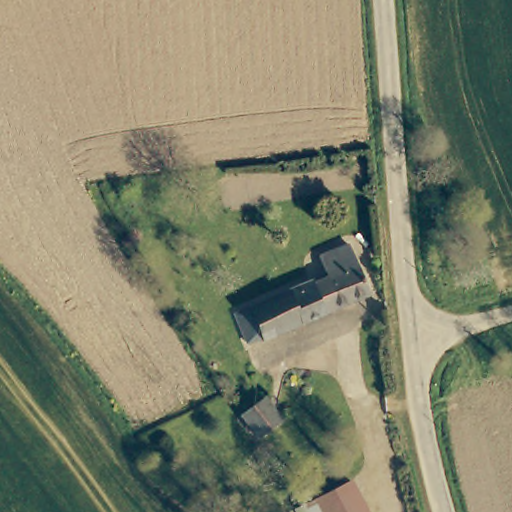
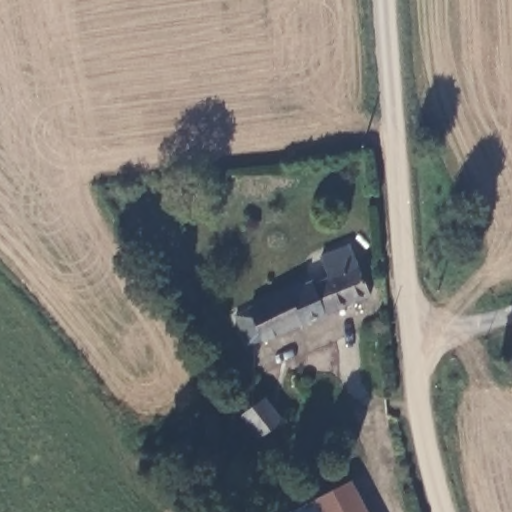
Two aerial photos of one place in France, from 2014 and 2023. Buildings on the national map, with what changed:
unchanged [(246,338),(238,318),(254,312),(264,307),(273,303),(298,293),(300,298),(316,291),(314,286),(330,279),(325,266),(322,257),(350,245),(353,244),(357,253),(374,295),(292,328),(265,341),(264,338),(248,345),(246,338)]
unchanged [(280,421),(254,437),(240,416),(265,399),(280,421)]
unchanged [(347,485),(362,512),(300,512),(347,485)]

